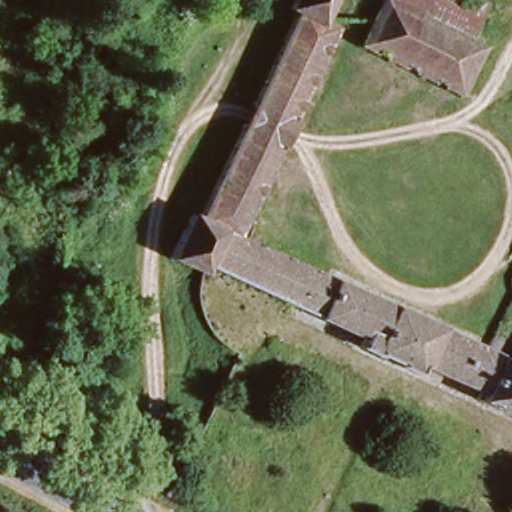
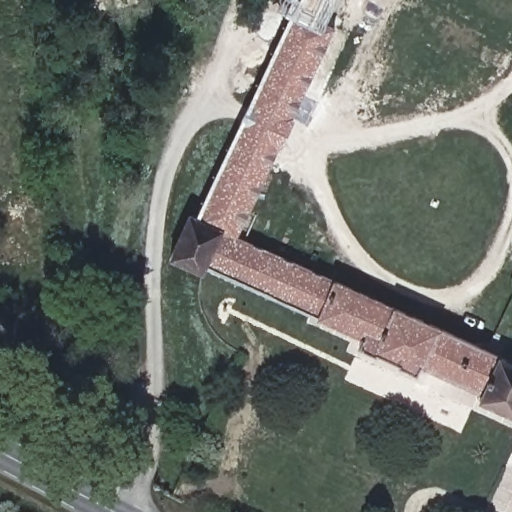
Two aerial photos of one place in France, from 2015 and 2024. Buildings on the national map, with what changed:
unchanged [(295,15),(287,11),(292,0),(331,0),(318,25),(330,32),(289,124),(249,104),(295,15)]
demolished [(419,16),(427,0),(450,0),(467,7),(472,0),(478,0),(486,5),(468,40),(483,48),(461,91),(361,42),(380,0),(386,0),(419,16)]
unchanged [(231,122),(244,101),(249,104),(289,124),(278,146),(240,126),(231,122)]
unchanged [(190,215),(195,218),(240,126),(278,146),(237,236),(512,362),(512,416),(480,400),(484,393),(429,365),(423,376),(363,348),(366,337),(209,263),(201,275),(168,258),(190,215)]

